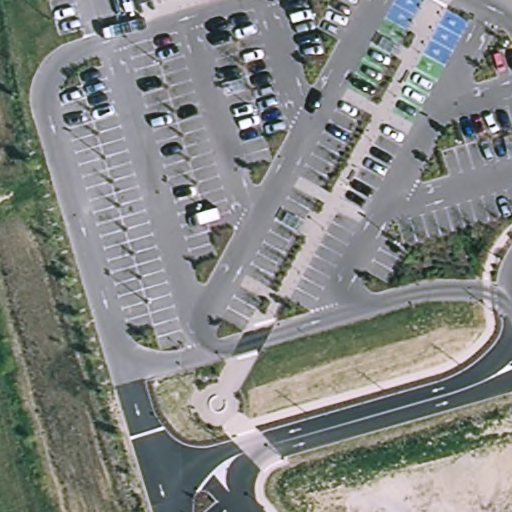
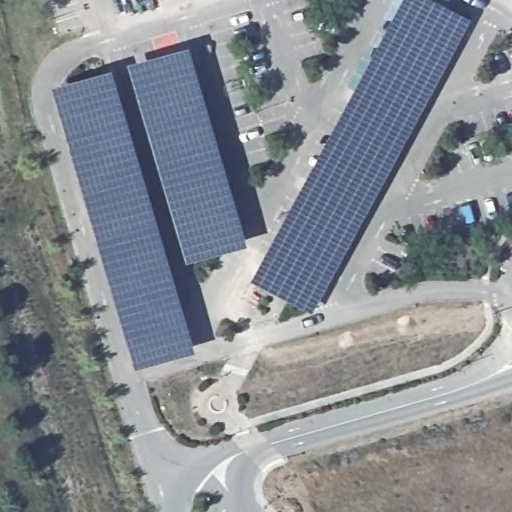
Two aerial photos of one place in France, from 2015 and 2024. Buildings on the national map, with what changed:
new [(395,0),(441,0),(470,16),(310,311),(249,276),(395,0)]
new [(187,258),(129,62),(185,44),(245,242),(187,258)]
new [(134,366),(50,86),(110,68),(193,348),(134,366)]

